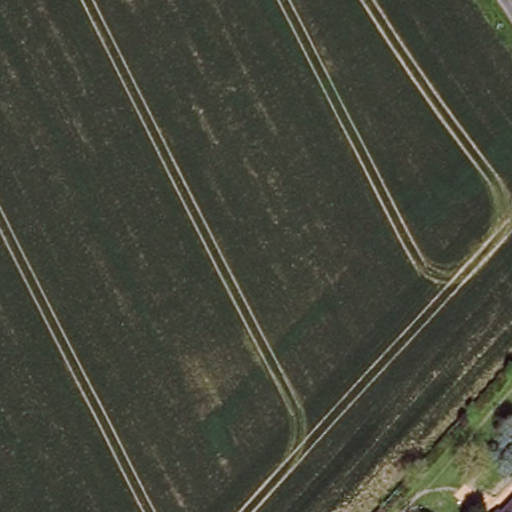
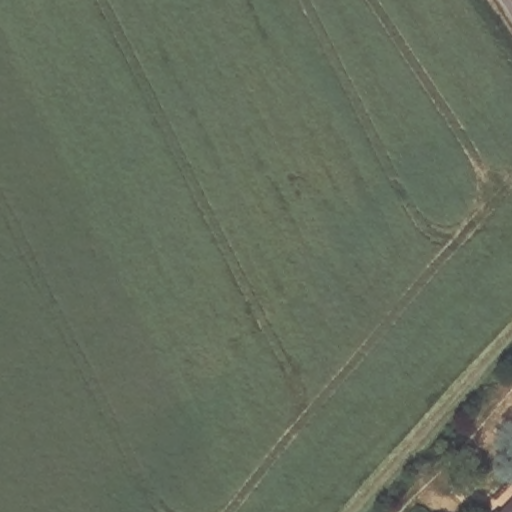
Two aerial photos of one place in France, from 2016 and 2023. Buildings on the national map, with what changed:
unchanged [(502,512),(492,512),(497,507),(502,512)]
unchanged [(507,512),(512,507),(512,512),(507,512)]

